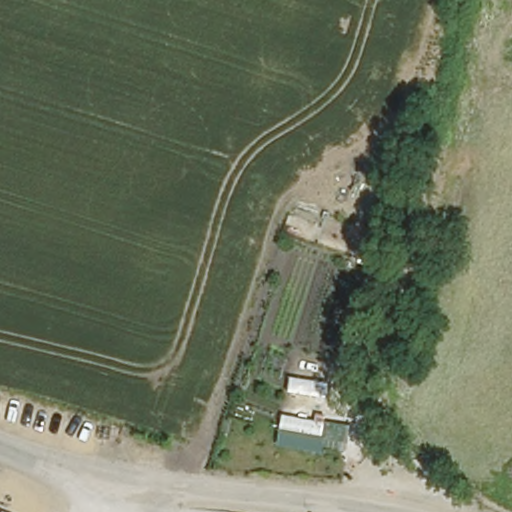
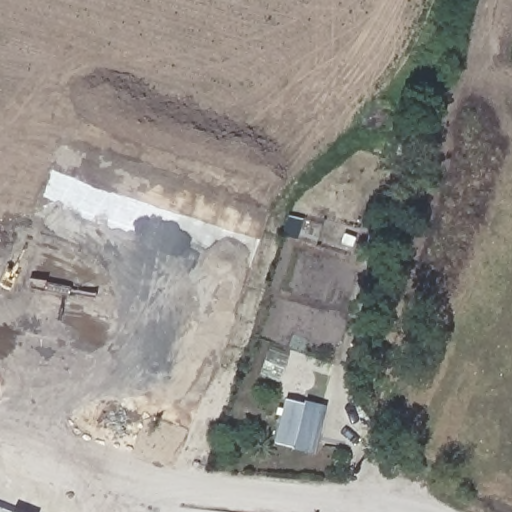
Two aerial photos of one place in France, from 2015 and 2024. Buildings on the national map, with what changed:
new [(313,453),(274,444),(285,400),(304,405),(305,400),(326,405),(313,453)]

